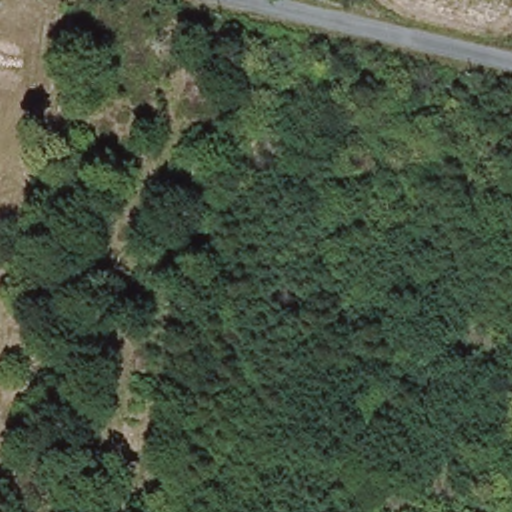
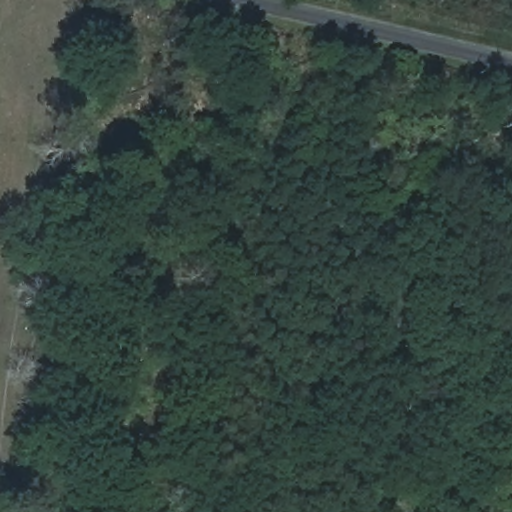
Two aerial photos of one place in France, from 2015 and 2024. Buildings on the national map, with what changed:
[]

